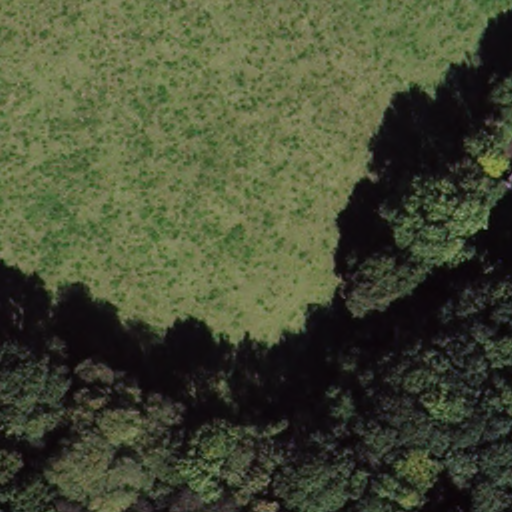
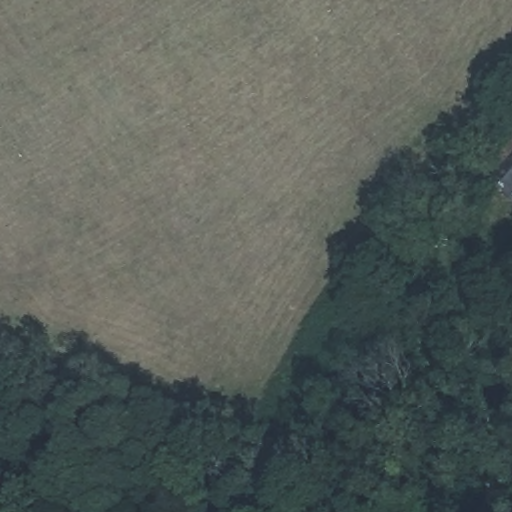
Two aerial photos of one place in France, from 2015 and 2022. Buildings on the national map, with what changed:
unchanged [(491,198),(512,166),(512,209),(511,211),(491,198)]

